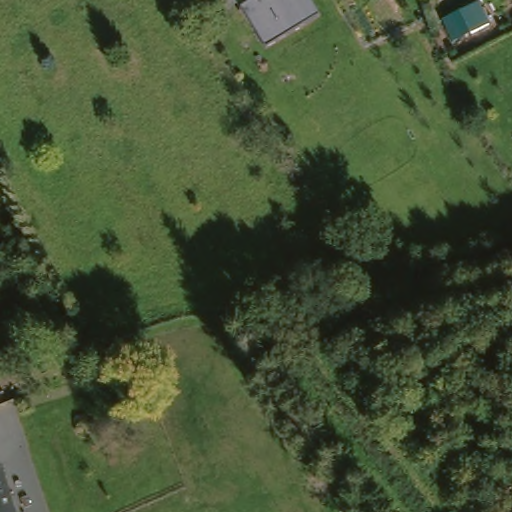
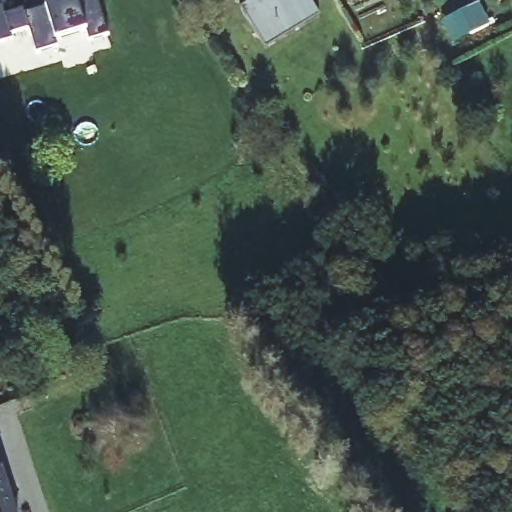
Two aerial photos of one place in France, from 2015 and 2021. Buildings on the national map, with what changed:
new [(3,14),(21,9),(22,13),(66,0),(96,0),(107,34),(87,40),(84,30),(54,39),(56,46),(34,53),(27,29),(9,34),(10,39),(0,42),(0,6),(3,14)]
unchanged [(264,0),(303,0),(318,23),(263,57),(238,16),(264,0)]
unchanged [(493,26),(475,35),(464,13),(481,4),(493,26)]
unchanged [(0,512),(0,470),(14,512),(0,512)]

